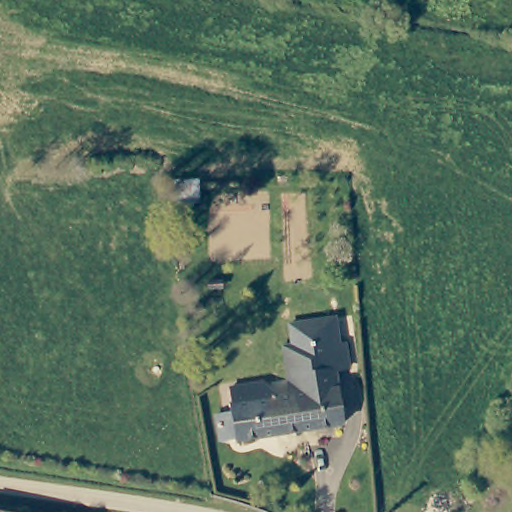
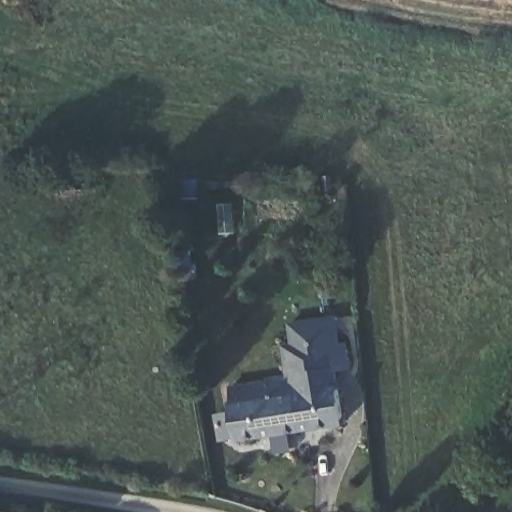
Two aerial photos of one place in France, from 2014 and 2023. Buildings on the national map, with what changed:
unchanged [(238,442),(231,404),(235,404),(232,387),(264,381),(280,396),(291,394),(282,347),(329,339),(345,424),(238,442)]

